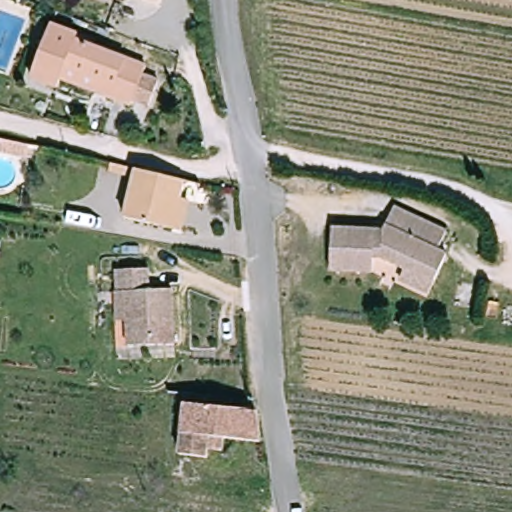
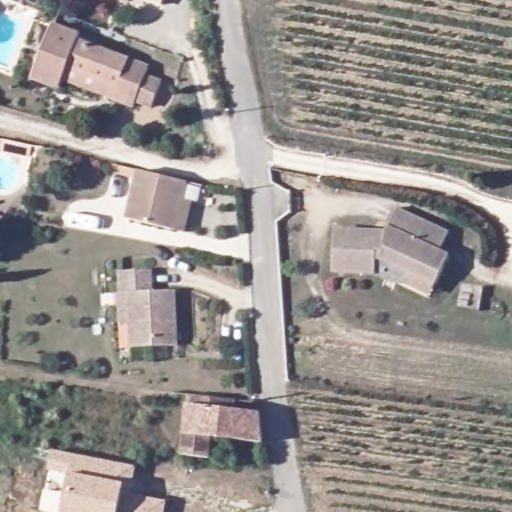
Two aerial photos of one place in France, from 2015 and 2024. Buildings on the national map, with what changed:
unchanged [(117,0),(123,0),(122,2),(117,0)]
unchanged [(166,4),(154,0),(168,0),(166,4)]
unchanged [(64,89),(40,79),(64,24),(89,34),(88,39),(154,66),(136,109),(114,101),(68,82),(64,89)]
unchanged [(184,235),(172,231),(122,217),(137,166),(188,179),(183,196),(194,202),(184,235)]
unchanged [(406,283),(411,272),(388,261),(380,261),(379,275),(337,274),(339,232),(389,234),(401,210),(452,234),(443,253),(452,257),(439,285),(434,296),(406,283)]
unchanged [(161,290),(180,289),(184,343),(131,346),(128,293),(128,270),(160,269),(161,290)]
unchanged [(214,438),(211,461),(186,457),(191,428),(194,407),(197,394),(239,401),(238,414),(256,417),(264,418),(268,446),(214,438)]
new [(168,500),(165,512),(48,512),(41,510),(45,490),(66,494),(71,475),(49,471),(53,450),(136,466),(131,492),(168,500)]

